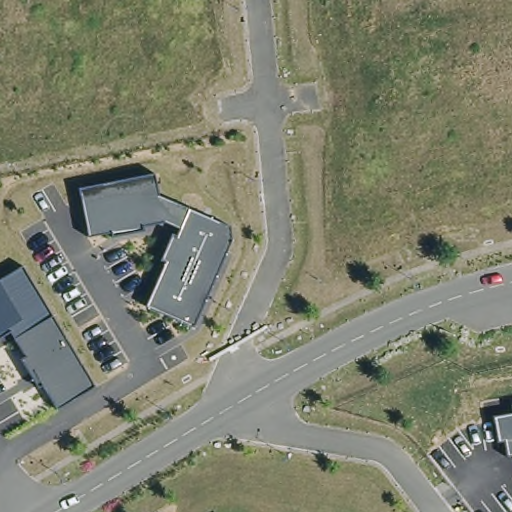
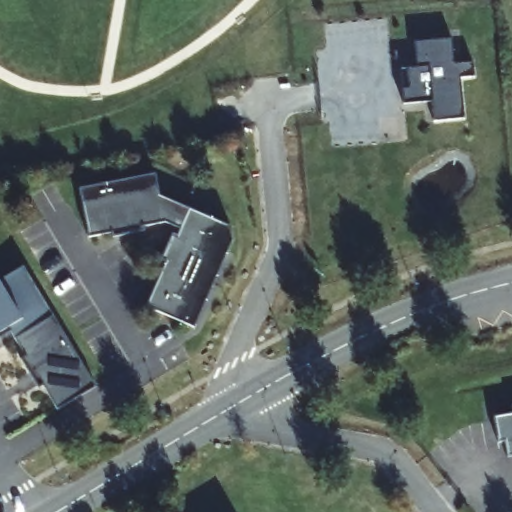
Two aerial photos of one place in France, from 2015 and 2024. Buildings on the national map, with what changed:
new [(452,38),(454,64),(473,62),(474,75),(459,77),(463,117),(434,120),(434,100),(404,102),(403,90),(410,89),(409,67),(418,66),(416,42),(452,38)]
unchanged [(229,229),(189,325),(146,306),(165,261),(157,258),(166,232),(176,234),(180,225),(158,219),(138,225),(139,231),(110,237),(108,231),(88,234),(75,185),(152,175),(153,193),(184,208),(229,229)]
unchanged [(53,407),(38,380),(29,384),(14,359),(20,354),(5,325),(0,328),(0,277),(15,265),(93,382),(53,407)]
unchanged [(493,415),(512,411),(511,404),(512,404),(512,454),(497,449),(493,415)]

